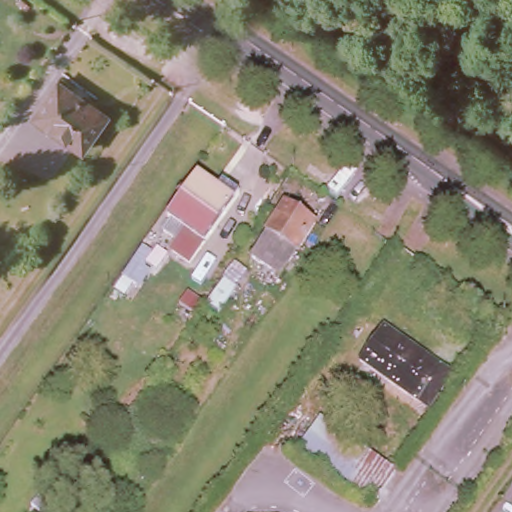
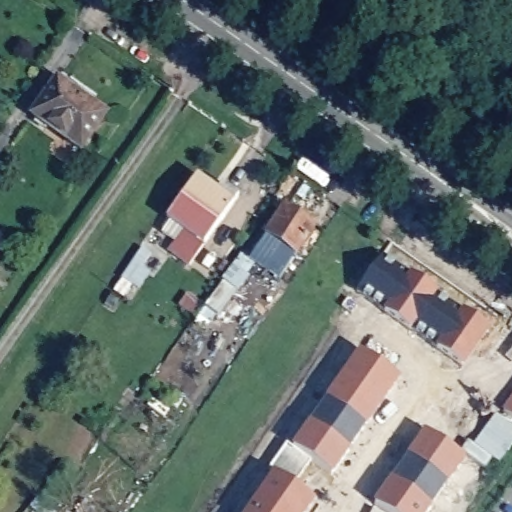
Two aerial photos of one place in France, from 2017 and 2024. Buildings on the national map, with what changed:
unchanged [(76,153),(29,118),(53,84),(101,119),(76,153)]
unchanged [(184,246),(191,236),(169,220),(197,178),(217,192),(223,183),(241,196),(197,256),(184,246)]
unchanged [(317,227),(301,256),(279,282),(250,259),(268,232),(285,205),(317,227)]
new [(407,277),(408,275),(438,294),(436,297),(460,314),(461,312),(490,331),(465,367),(410,334),(383,314),(355,294),(381,258),(407,277)]
demolished [(385,328),(450,374),(426,407),(361,360),(385,328)]
new [(332,477),(313,463),(295,488),(314,504),(308,512),(247,512),(272,476),(267,471),(286,445),(290,448),(358,352),(400,381),(332,477)]
new [(500,412),(512,396),(512,421),(500,412)]
new [(430,512),(380,512),(372,507),(423,432),(465,459),(430,512)]
demolished [(360,466),(370,454),(395,472),(375,500),(367,493),(350,480),(360,466)]

